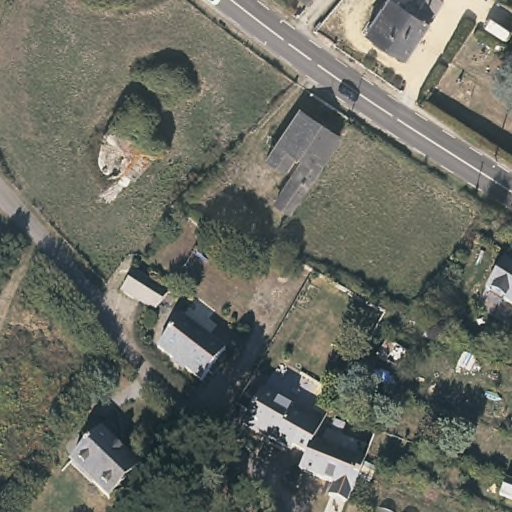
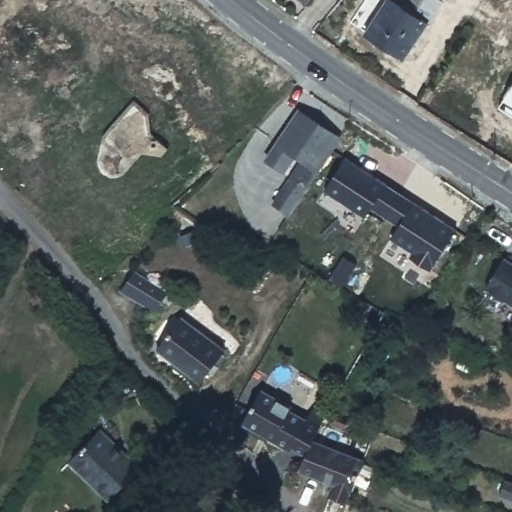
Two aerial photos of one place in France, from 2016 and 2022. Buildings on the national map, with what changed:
unchanged [(407,58),(367,32),(388,0),(439,0),(443,2),(407,58)]
unchanged [(130,167),(127,171),(120,174),(116,175),(111,175),(107,175),(103,172),(101,169),(100,165),(99,159),(99,154),(99,147),(101,142),(104,134),(134,99),(151,113),(145,127),(169,147),(163,155),(155,154),(139,174),(130,167)]
unchanged [(340,137),(290,212),(276,203),(304,159),(295,154),(285,170),(268,158),(299,110),(340,137)]
new [(366,215),(326,188),(347,156),(387,182),(366,215)]
new [(430,268),(410,256),(414,250),(391,236),(414,200),(457,228),(430,268)]
unchanged [(512,296),(491,283),(509,254),(512,256),(512,296)]
unchanged [(160,297),(145,315),(112,295),(125,275),(160,297)]
unchanged [(216,376),(210,373),(204,381),(160,349),(183,318),(226,350),(215,365),(220,369),(216,376)]
unchanged [(295,400),(293,405),(311,415),(295,443),(248,414),(267,383),(295,400)]
unchanged [(139,464),(108,498),(91,483),(95,479),(72,458),(100,428),(139,464)]
unchanged [(364,460),(346,506),(328,498),(334,485),(300,470),(313,440),(364,460)]
unchanged [(512,498),(499,494),(505,476),(512,479),(512,498)]

